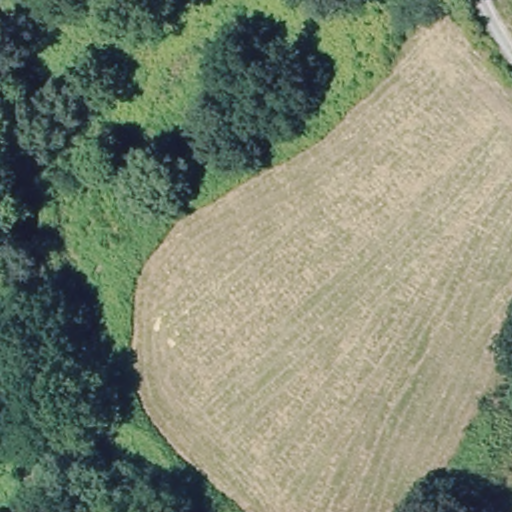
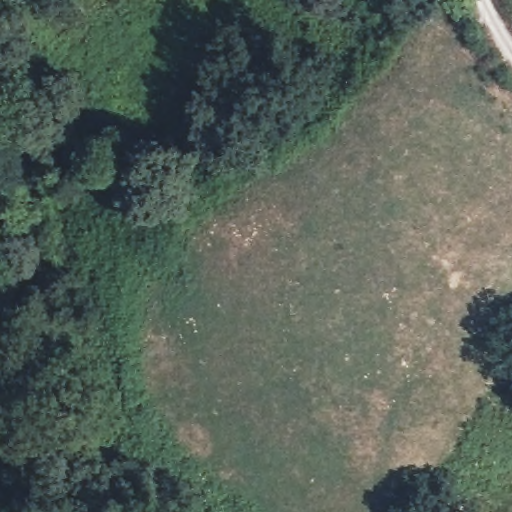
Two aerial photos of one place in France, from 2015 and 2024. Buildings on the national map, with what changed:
[]

